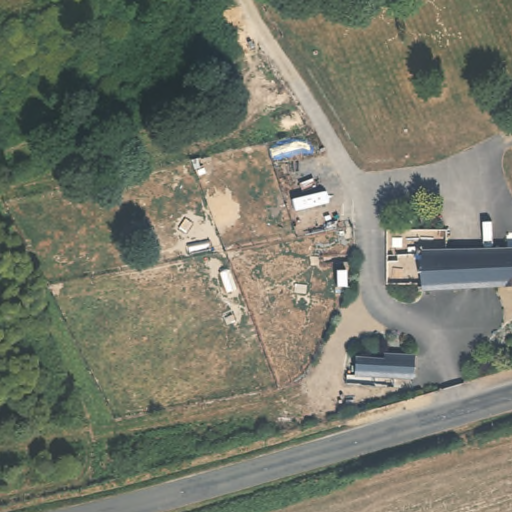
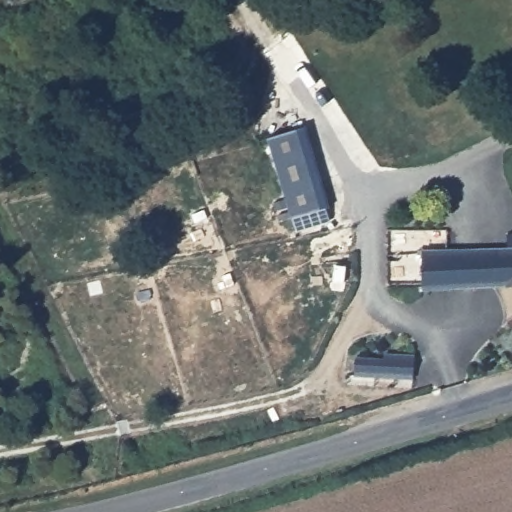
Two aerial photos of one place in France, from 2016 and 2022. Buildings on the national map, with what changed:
new [(297,128),(305,126),(330,206),(325,208),(330,222),(296,231),(291,216),(267,137),(297,128)]
unchanged [(512,287),(395,289),(390,289),(390,249),(470,247),(512,246),(512,287)]
unchanged [(406,357),(414,357),(414,380),(384,379),(359,378),(359,361),(381,361),(381,357),(406,357)]

